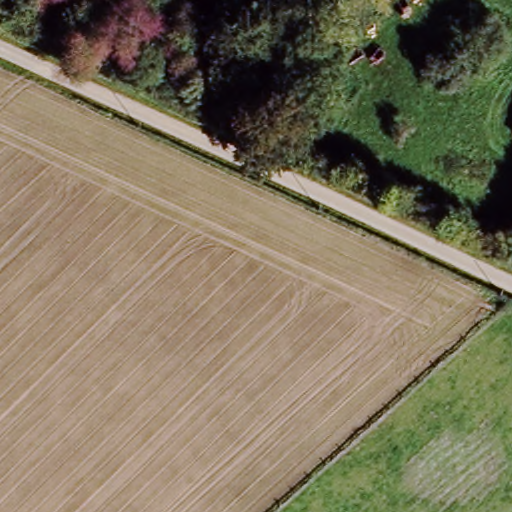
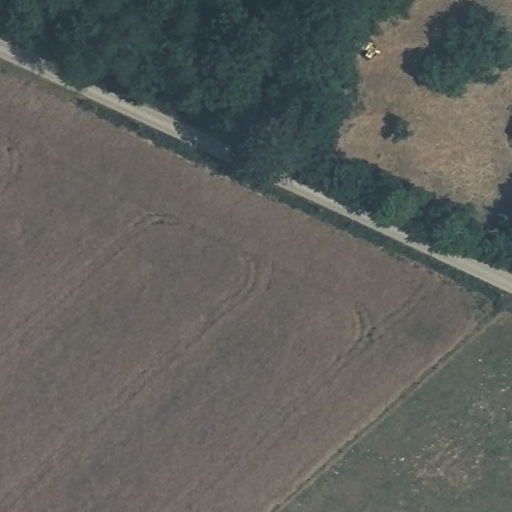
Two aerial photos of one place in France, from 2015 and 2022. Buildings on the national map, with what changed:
unchanged [(510,134),(512,130),(512,135),(510,134)]

